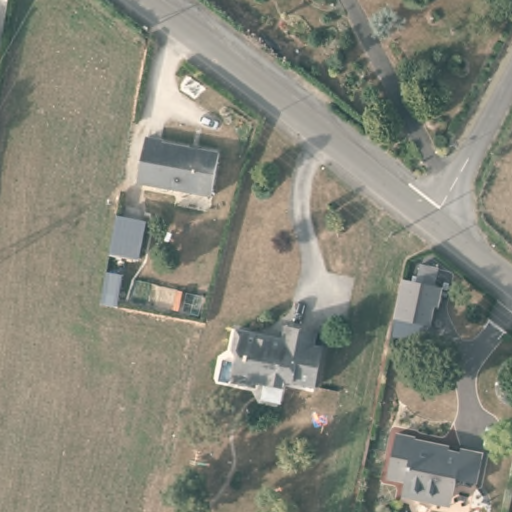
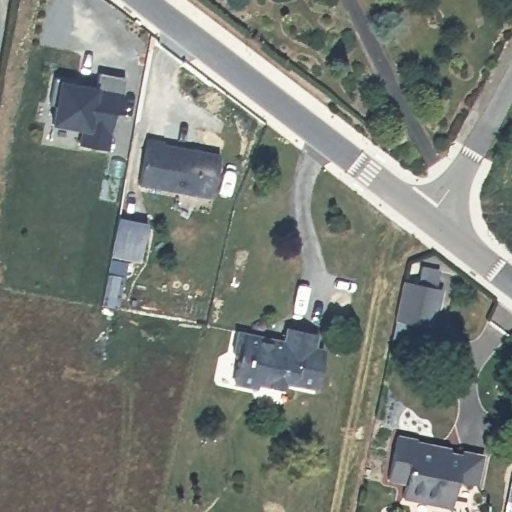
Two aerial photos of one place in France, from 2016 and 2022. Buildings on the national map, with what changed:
new [(78,85),(96,88),(99,76),(125,81),(119,116),(114,115),(108,151),(80,146),(83,132),(53,126),(56,109),(50,108),(55,81),(78,85)]
unchanged [(163,138),(163,140),(220,154),(213,191),(140,180),(149,135),(163,138)]
unchanged [(147,226),(141,263),(111,258),(118,222),(147,226)]
unchanged [(102,307),(108,277),(124,280),(119,309),(102,307)]
unchanged [(444,289),(441,308),(434,307),(429,326),(396,320),(404,281),(444,289)]
unchanged [(259,327),(261,336),(283,338),(285,322),(319,330),(317,341),(327,343),(319,381),(279,375),(269,382),(254,379),(249,385),(239,383),(233,376),(238,351),(235,347),(239,323),(259,327)]
unchanged [(478,480),(460,477),(454,493),(446,491),(441,501),(405,494),(407,478),(391,476),(399,431),(423,435),(424,441),(448,444),(454,451),(463,451),(465,448),(484,451),(478,480)]

